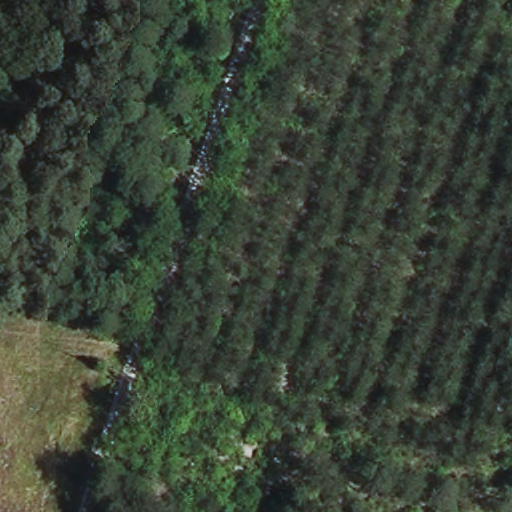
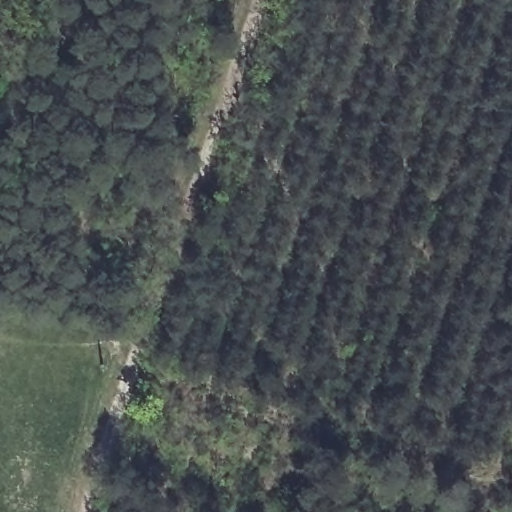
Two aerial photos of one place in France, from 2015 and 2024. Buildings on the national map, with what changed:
unchanged [(97,340),(117,343),(112,363),(93,358),(97,343),(97,340)]

